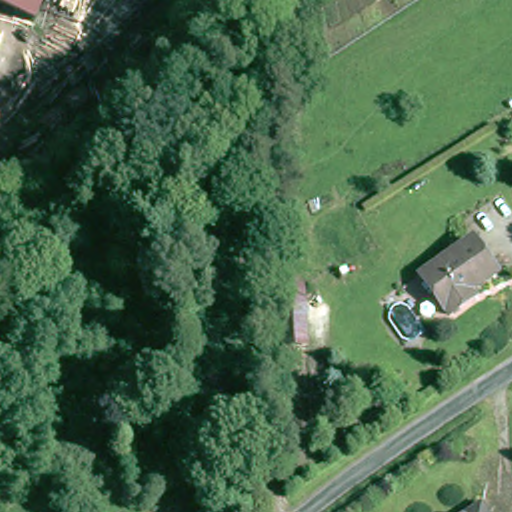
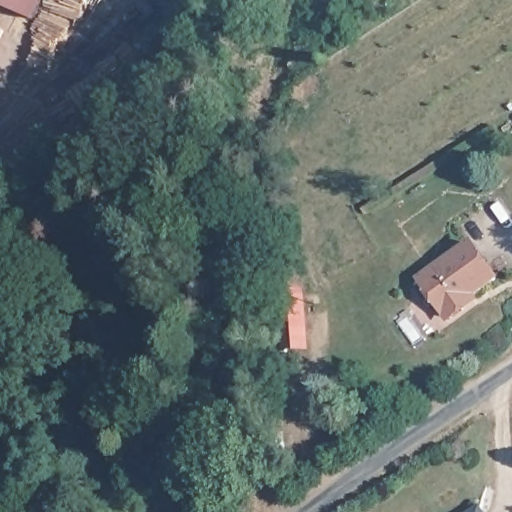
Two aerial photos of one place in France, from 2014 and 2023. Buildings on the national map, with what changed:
unchanged [(0,0),(43,0),(36,18),(0,0)]
unchanged [(466,306),(449,316),(421,271),(475,238),(499,276),(475,291),(480,297),(466,306)]
unchanged [(282,351),(277,292),(310,288),(315,350),(282,351)]
unchanged [(484,511),(485,512),(482,512),(484,511)]

